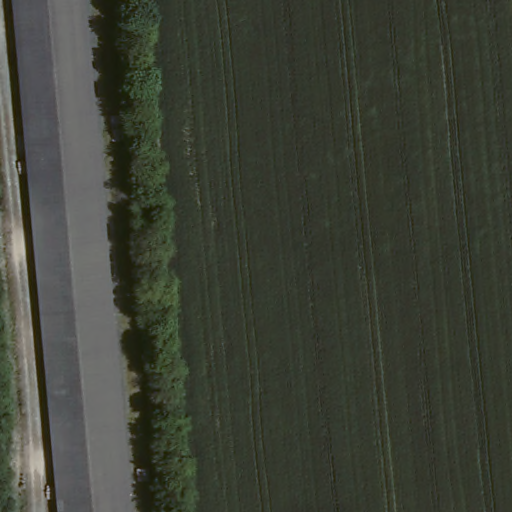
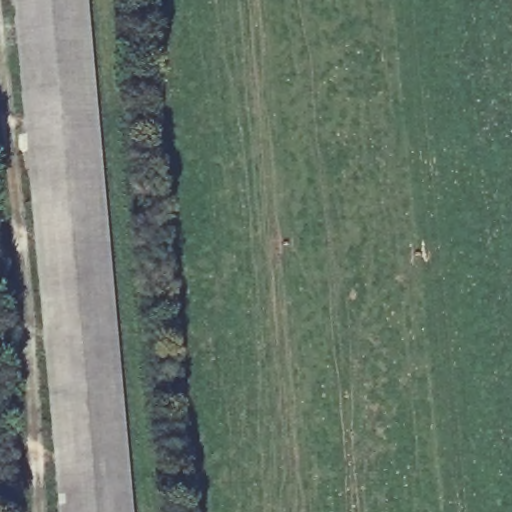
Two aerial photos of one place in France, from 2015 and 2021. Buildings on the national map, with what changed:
unchanged [(31,204),(13,0),(86,0),(100,167),(127,485),(130,512),(58,512),(56,491),(31,204)]

